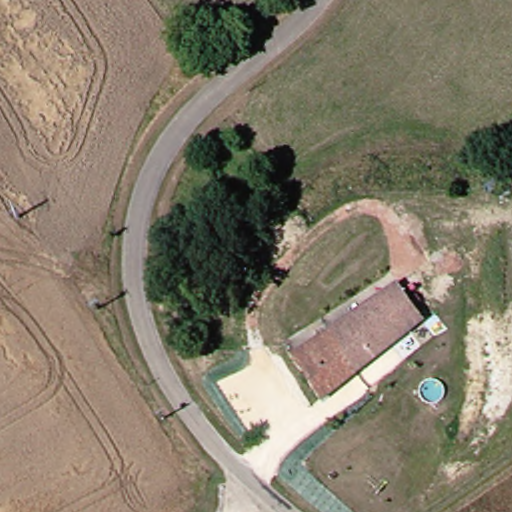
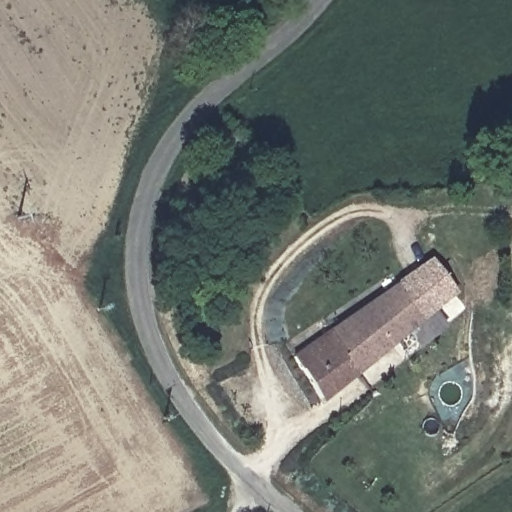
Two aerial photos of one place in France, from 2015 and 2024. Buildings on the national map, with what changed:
new [(433,257),(461,291),(424,321),(393,286),(433,257)]
unchanged [(393,286),(428,326),(327,401),(297,360),(308,351),(340,327),(393,286)]

